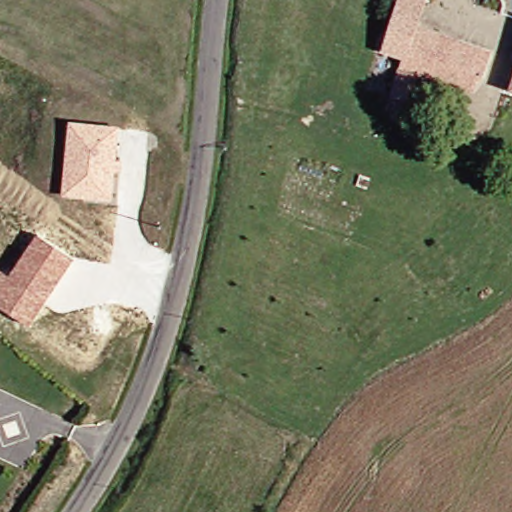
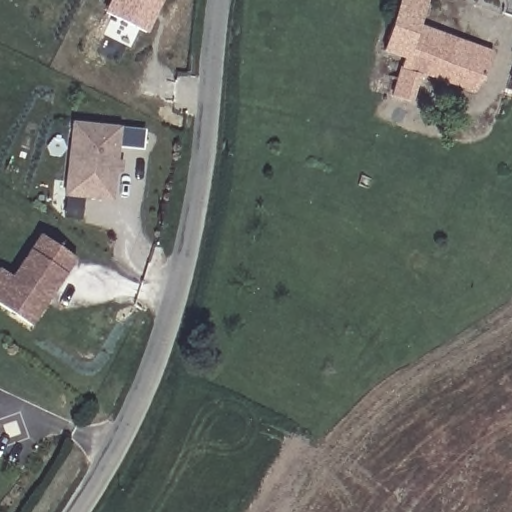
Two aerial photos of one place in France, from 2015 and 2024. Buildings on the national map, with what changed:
new [(110,0),(164,0),(148,33),(104,12),(110,0)]
unchanged [(425,69),(418,90),(387,81),(391,66),(380,62),(400,0),(429,0),(423,17),(498,41),(491,65),(488,64),(483,83),(434,66),(432,71),(425,69)]
unchanged [(65,183),(70,125),(117,129),(114,162),(120,163),(119,174),(113,173),(110,201),(82,198),(64,197),(65,183)]
unchanged [(40,235),(75,258),(31,326),(0,306),(0,269),(12,277),(40,235)]

